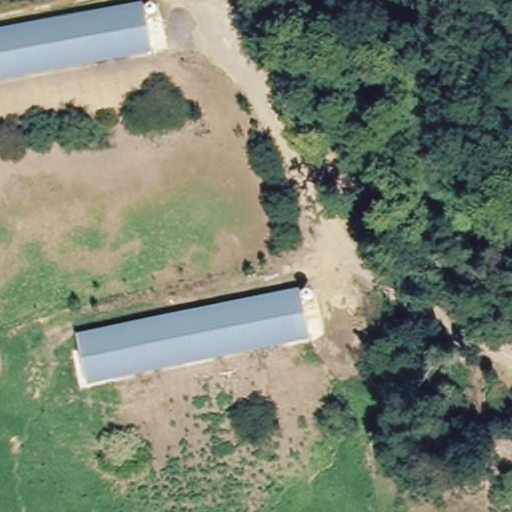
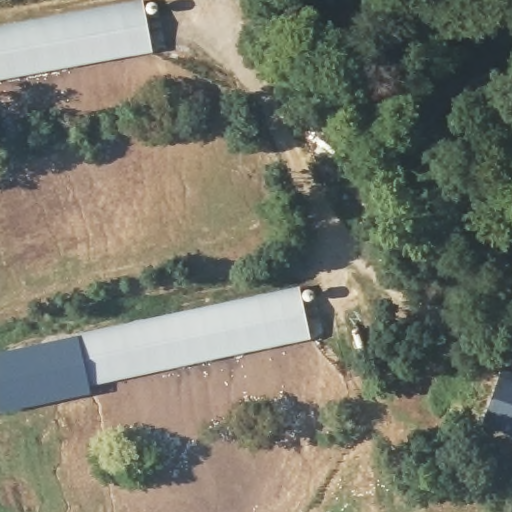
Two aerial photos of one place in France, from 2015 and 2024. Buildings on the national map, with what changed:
unchanged [(153,55),(0,81),(0,30),(144,5),(153,55)]
unchanged [(308,337),(84,386),(73,339),(296,289),(308,337)]
new [(73,339),(84,386),(88,384),(91,396),(0,414),(0,353),(77,336),(78,339),(73,339)]
new [(501,369),(512,373),(512,437),(481,426),(501,369)]

